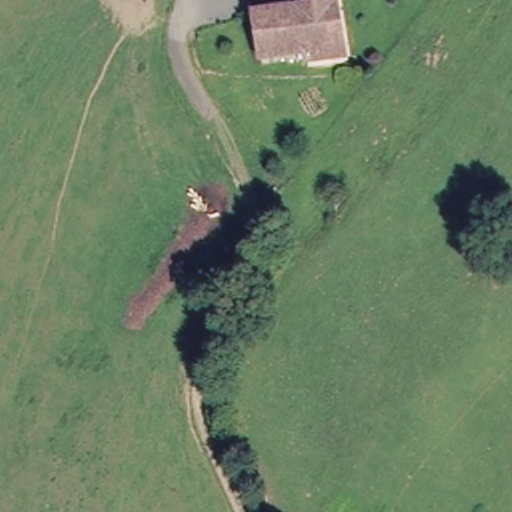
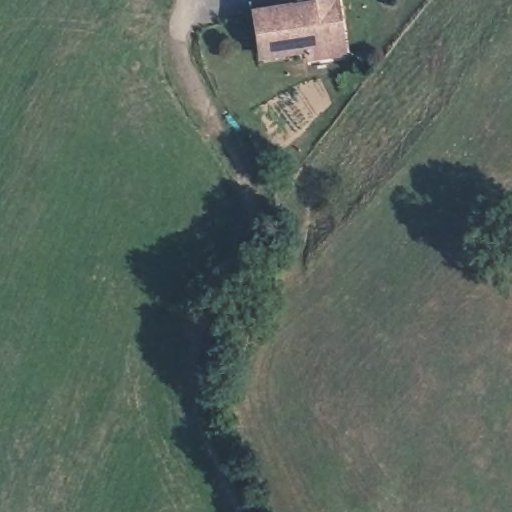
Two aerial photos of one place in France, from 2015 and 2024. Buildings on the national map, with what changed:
unchanged [(330,62),(310,65),(307,58),(263,66),(255,22),(333,7),(338,32),(343,59),(330,62)]

